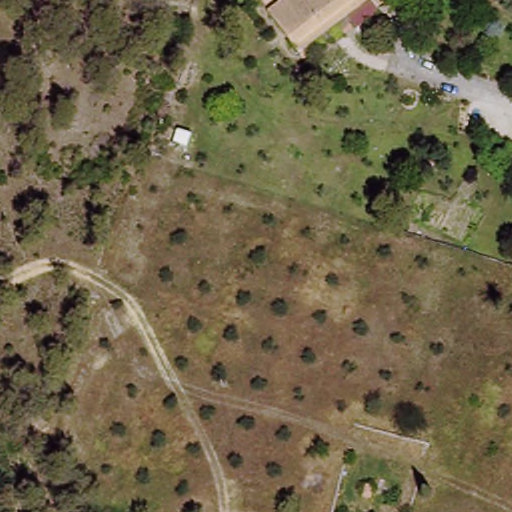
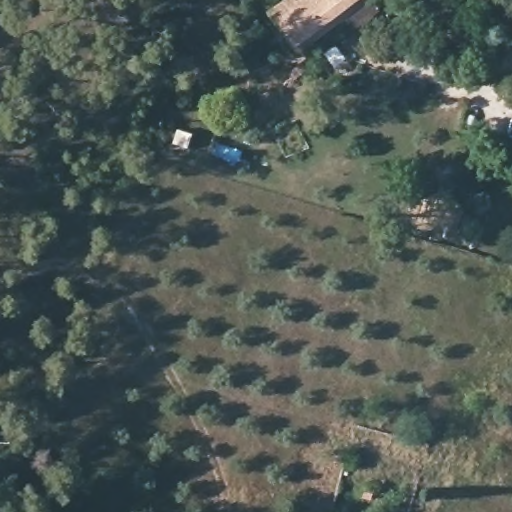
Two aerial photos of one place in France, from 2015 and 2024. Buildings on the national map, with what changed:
unchanged [(394,12),(378,25),(370,15),(298,62),(271,19),(299,0),(386,0),(394,12)]

